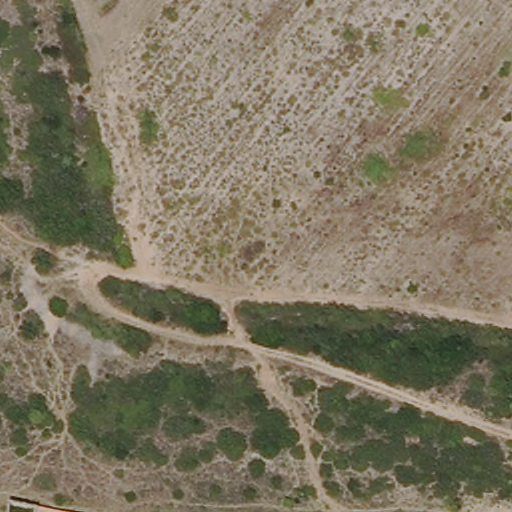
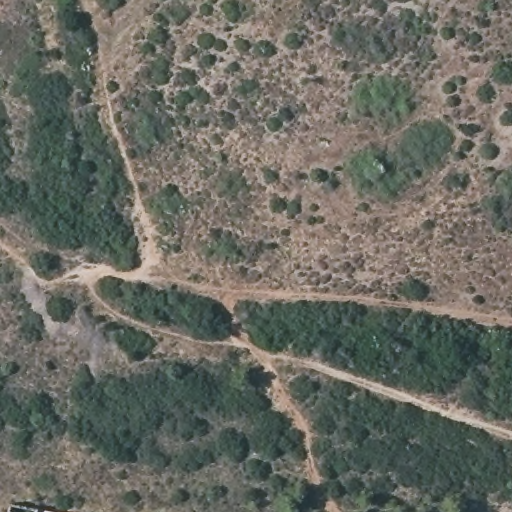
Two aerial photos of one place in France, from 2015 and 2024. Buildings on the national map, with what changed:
unchanged [(38,511),(46,512),(38,512),(38,511)]

